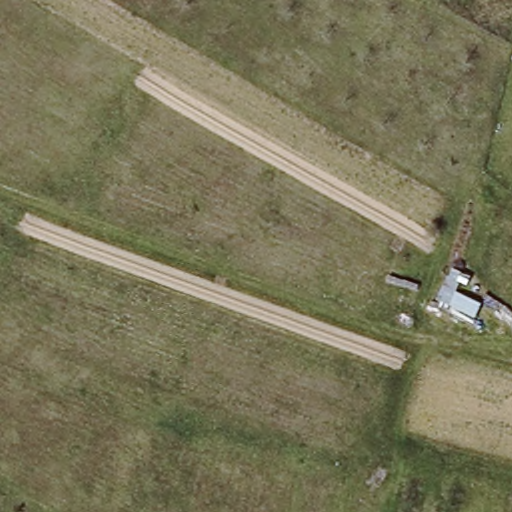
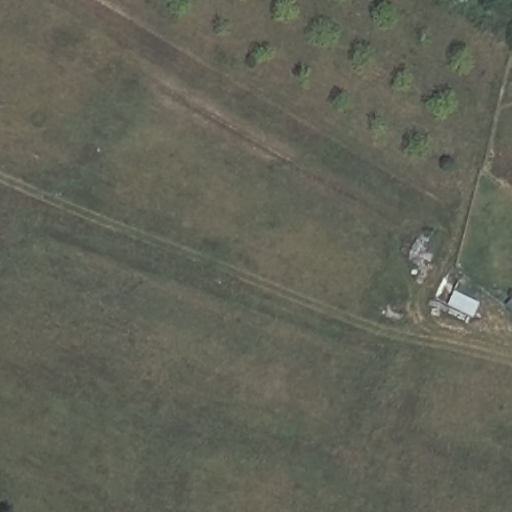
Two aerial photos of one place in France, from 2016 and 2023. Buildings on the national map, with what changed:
unchanged [(445,310),(459,292),(487,305),(477,324),(445,310)]

